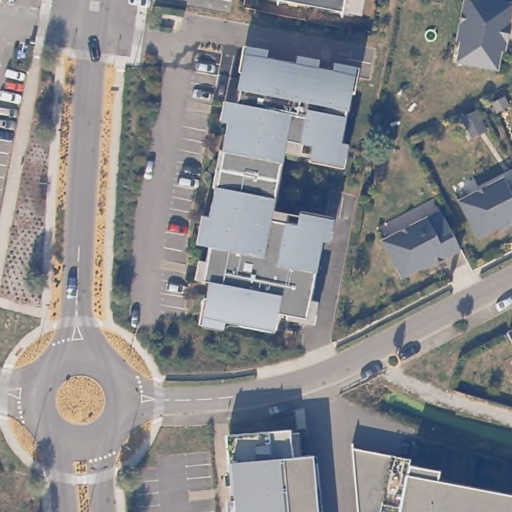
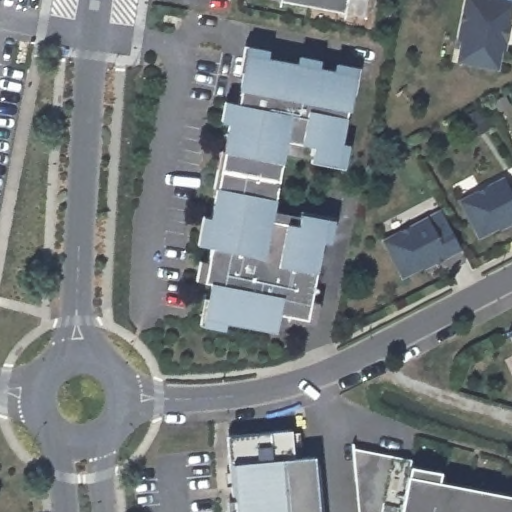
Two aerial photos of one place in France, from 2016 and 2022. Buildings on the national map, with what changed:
unchanged [(271,0),(366,0),(363,16),(271,0)]
unchanged [(459,60),(462,41),(458,40),(466,0),(504,0),(512,2),(512,12),(506,42),(504,48),(502,48),(498,68),(459,60)]
unchanged [(205,284),(193,280),(197,259),(208,259),(209,248),(195,244),(200,214),(209,214),(226,125),(218,121),(222,102),(235,103),(245,49),(269,53),(268,57),(295,62),(297,56),(319,61),(318,68),(333,69),(334,64),(358,68),(342,145),(348,147),(344,167),(285,153),(273,208),(335,220),(332,245),(319,243),(309,301),(319,303),(316,328),(279,322),(277,330),(227,321),(224,332),(198,324),(205,284)]
unchanged [(499,226),(479,236),(460,200),(504,177),(509,188),(512,187),(512,222),(507,224),(501,228),(499,226)]
unchanged [(441,210),(462,250),(402,278),(382,240),(441,210)]
unchanged [(508,332),(512,330),(512,340),(508,332)]
unchanged [(207,441),(267,431),(272,459),(288,456),(297,512),(218,512),(207,441)]
unchanged [(358,500),(381,502),(389,457),(408,464),(440,470),(439,480),(512,496),(512,512),(358,512),(358,500)]

